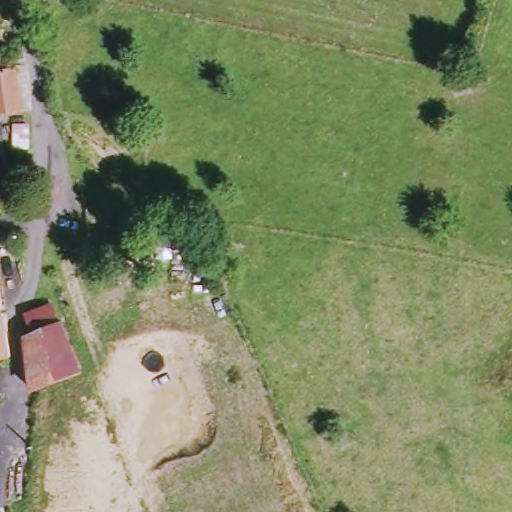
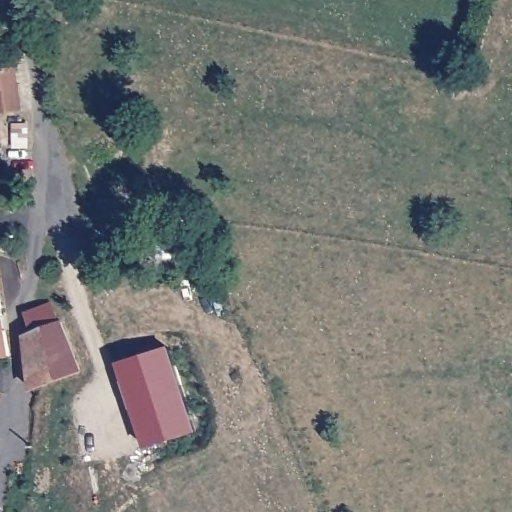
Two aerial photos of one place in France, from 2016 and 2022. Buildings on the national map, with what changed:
unchanged [(0,108),(0,67),(11,66),(14,107),(0,108)]
unchanged [(0,262),(2,263),(11,352),(12,357),(0,359),(0,262)]
unchanged [(30,328),(22,312),(42,300),(51,316),(55,313),(75,354),(28,381),(22,333),(30,328)]
new [(118,361),(168,347),(195,432),(144,447),(118,361)]

